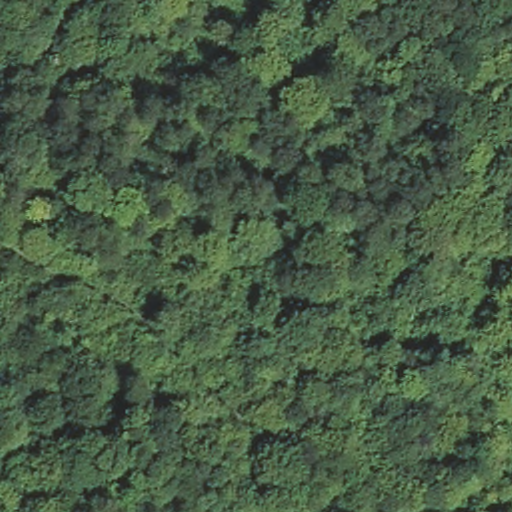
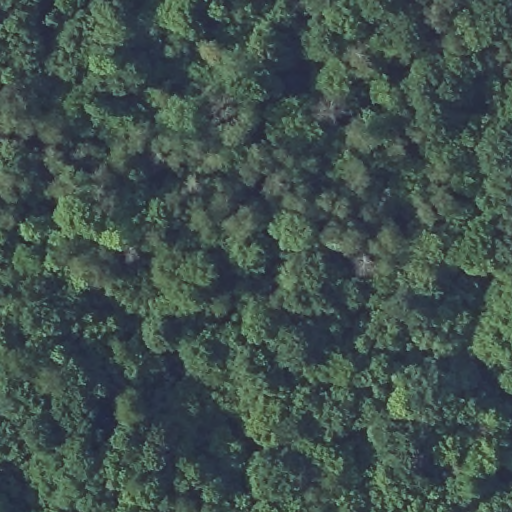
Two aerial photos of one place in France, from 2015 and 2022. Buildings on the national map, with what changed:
[]

